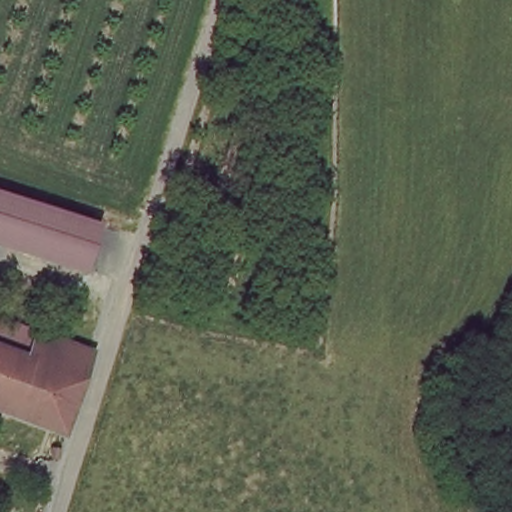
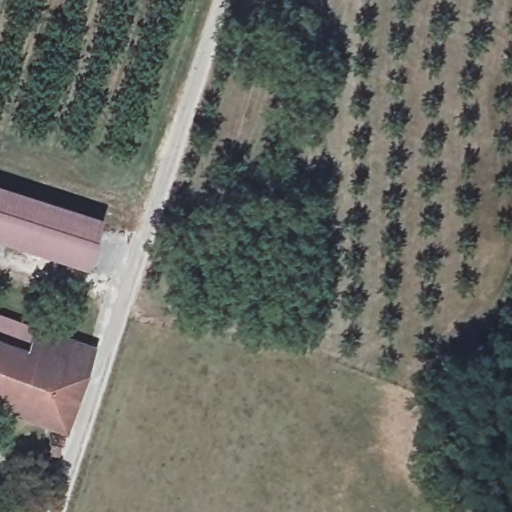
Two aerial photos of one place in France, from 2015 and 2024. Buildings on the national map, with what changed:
unchanged [(169,36),(176,16),(180,5),(202,12),(198,25),(192,43),(169,36)]
unchanged [(0,243),(0,193),(99,226),(84,269),(0,243)]
unchanged [(0,351),(0,321),(36,334),(29,360),(0,351)]
unchanged [(87,354),(80,375),(29,360),(36,334),(87,354)]
unchanged [(59,430),(0,409),(0,351),(29,360),(80,375),(59,430)]
unchanged [(45,449),(50,435),(64,444),(61,453),(45,449)]

